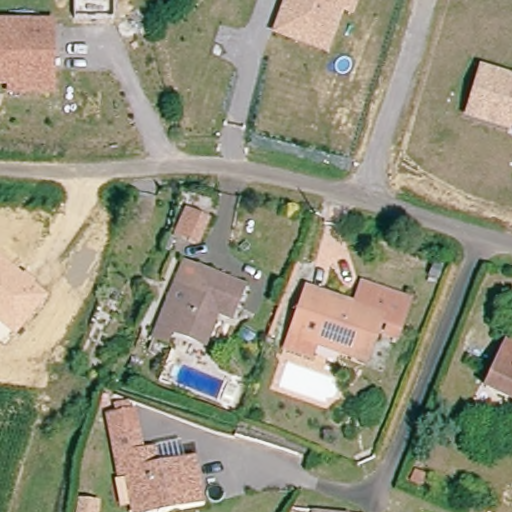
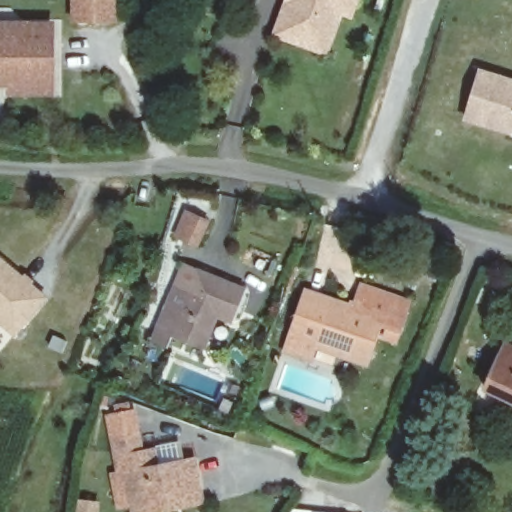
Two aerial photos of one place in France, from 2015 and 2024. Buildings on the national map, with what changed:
new [(71,0),(118,0),(117,21),(71,21),(71,0)]
unchanged [(342,16),(327,55),(271,36),(283,0),(359,0),(352,20),(342,16)]
unchanged [(7,25),(47,25),(48,92),(7,92),(7,76),(0,76),(0,25),(7,25)]
unchanged [(503,132),(461,118),(477,69),(512,80),(512,131),(504,128),(503,132)]
unchanged [(203,219),(196,245),(172,236),(179,212),(203,219)]
unchanged [(24,270),(35,278),(36,279),(32,285),(47,297),(16,336),(0,324),(0,256),(21,275),(24,270)]
unchanged [(234,319),(218,315),(209,345),(176,334),(172,345),(160,340),(169,311),(184,265),(201,270),(245,285),(234,319)]
unchanged [(285,354),(304,288),(326,295),(353,303),(357,286),(373,290),(402,298),(395,328),(374,321),(365,357),(332,348),(312,343),(307,360),(285,354)]
unchanged [(504,340),(512,344),(512,400),(483,386),(504,340)]
unchanged [(139,505),(133,470),(125,471),(119,410),(140,407),(147,450),(160,447),(162,465),(199,458),(206,503),(171,508),(149,512),(139,512),(139,505)]
unchanged [(98,483),(95,512),(91,512),(77,510),(81,481),(98,483)]
unchanged [(318,506),(332,512),(316,512),(318,506)]

